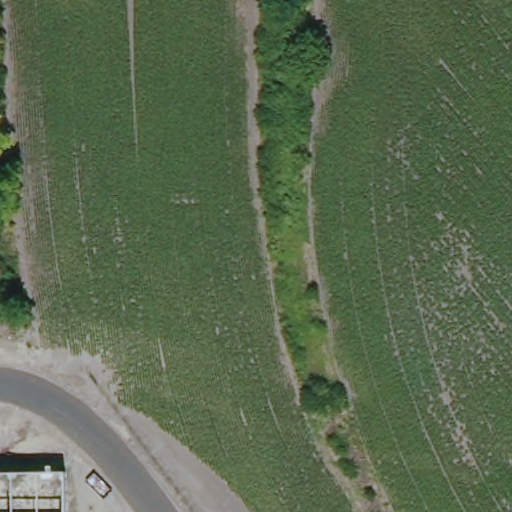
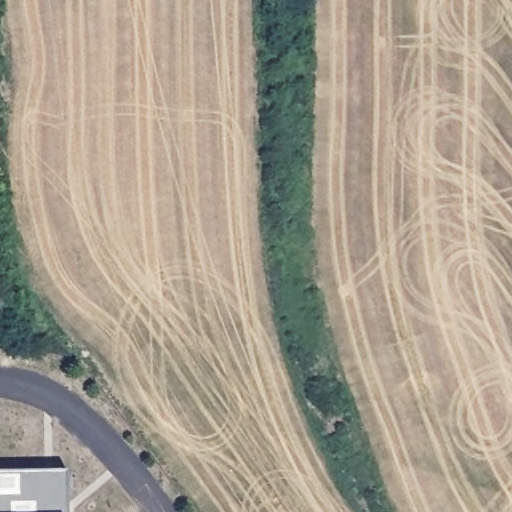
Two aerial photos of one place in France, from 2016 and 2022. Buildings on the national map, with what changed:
unchanged [(62,512),(0,512),(0,473),(62,473),(62,512)]

